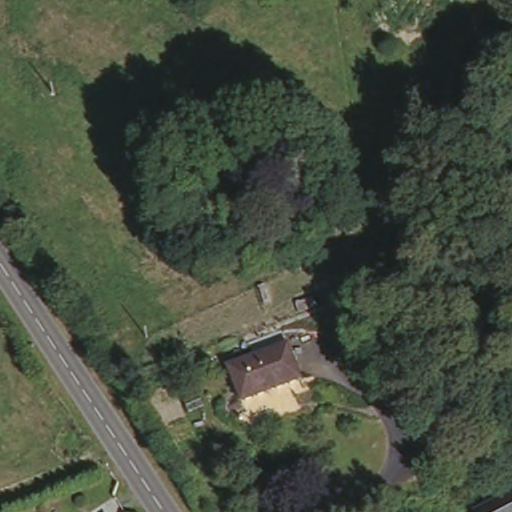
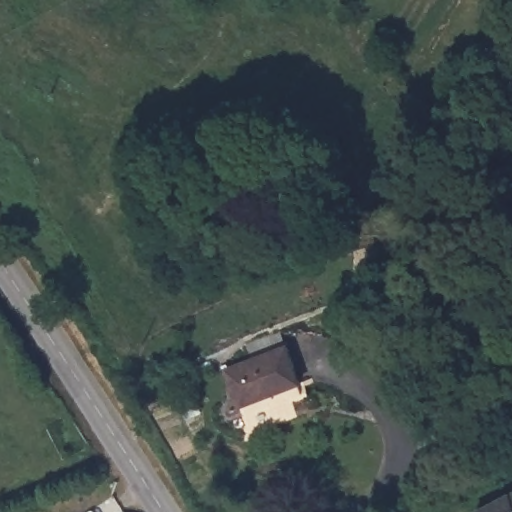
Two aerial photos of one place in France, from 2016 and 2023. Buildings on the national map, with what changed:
unchanged [(222,368),(288,342),(304,384),(239,410),(222,368)]
unchanged [(473,512),(483,506),(483,493),(512,480),(512,512),(473,512)]

